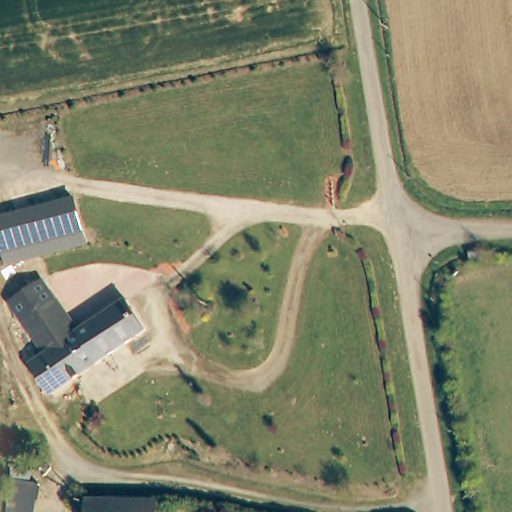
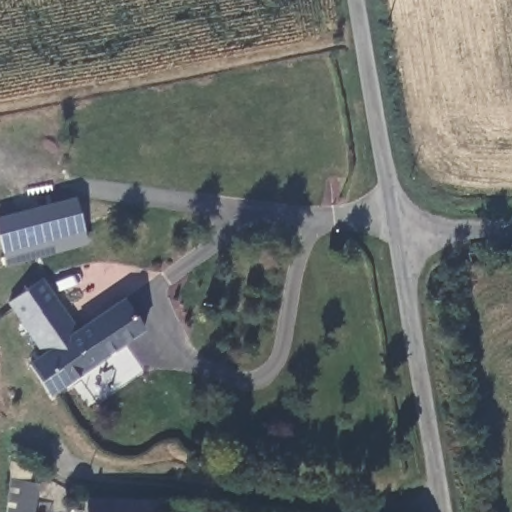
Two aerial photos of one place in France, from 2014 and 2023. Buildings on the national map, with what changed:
unchanged [(74,197),(82,229),(86,245),(5,267),(0,252),(0,251),(0,216),(74,197)]
unchanged [(9,301),(41,279),(78,335),(65,343),(57,333),(43,343),(47,353),(9,301)]
unchanged [(36,365),(35,363),(47,353),(43,343),(57,333),(65,343),(78,335),(130,300),(132,304),(145,325),(148,329),(54,395),(42,401),(25,372),(36,365)]
unchanged [(9,480),(35,489),(32,512),(7,512),(9,493),(9,480)]
unchanged [(158,501),(159,512),(85,512),(85,500),(158,501)]

